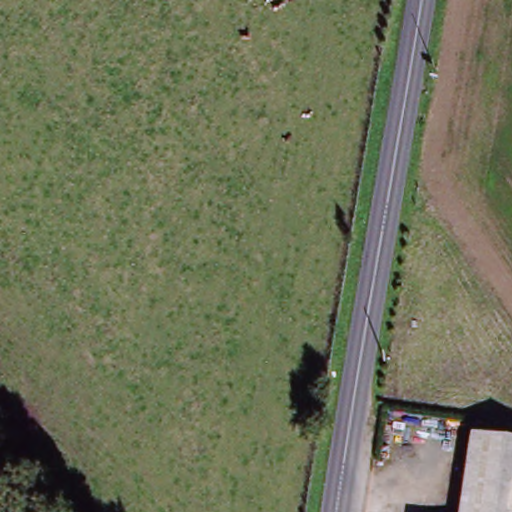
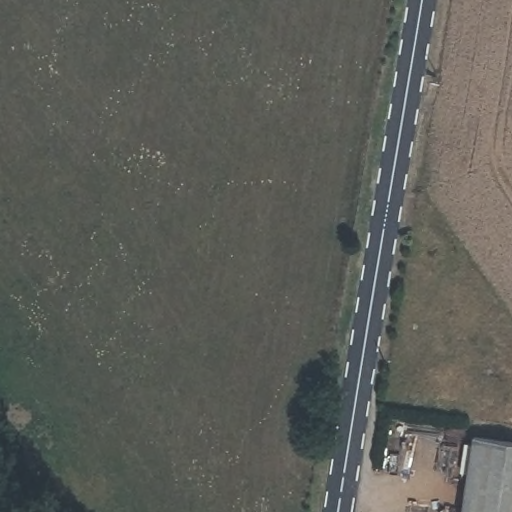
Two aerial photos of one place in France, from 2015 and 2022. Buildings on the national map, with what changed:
unchanged [(512,442),(512,512),(463,512),(472,437),(512,442)]

